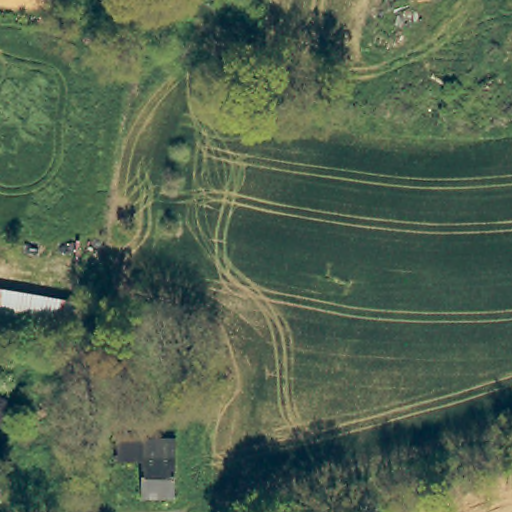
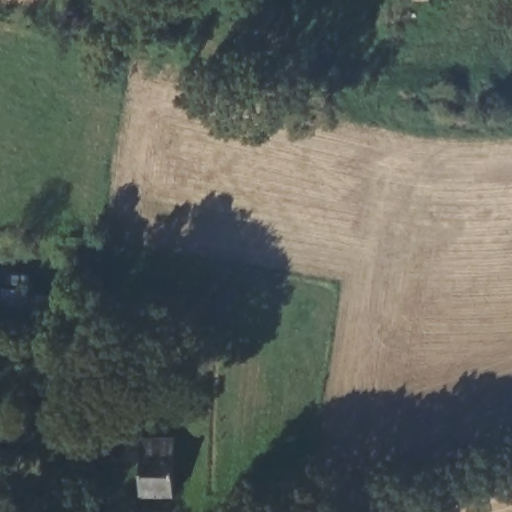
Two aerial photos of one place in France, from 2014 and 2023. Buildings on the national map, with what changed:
unchanged [(87,301),(82,339),(0,327),(0,289),(87,301)]
unchanged [(150,459),(122,459),(122,438),(182,438),(182,496),(150,496),(150,459)]

